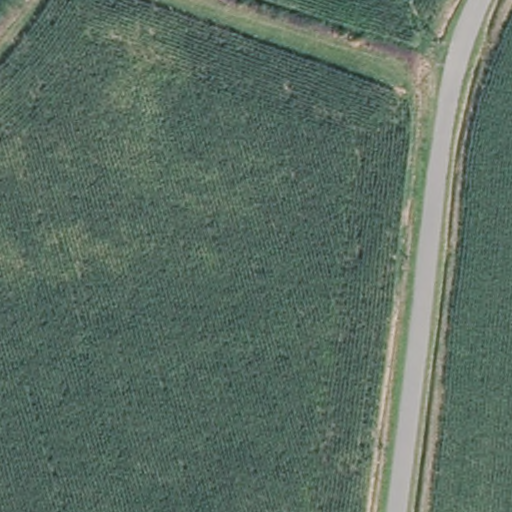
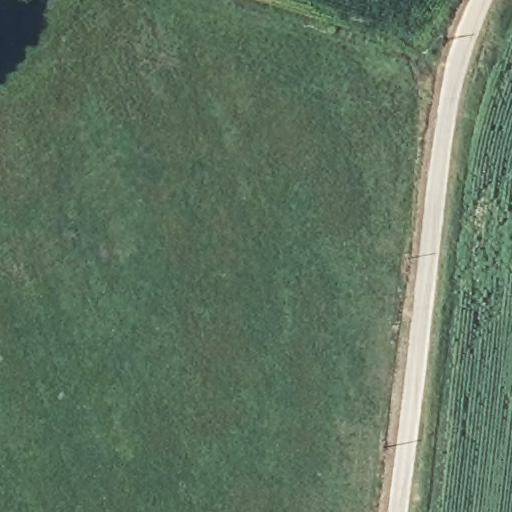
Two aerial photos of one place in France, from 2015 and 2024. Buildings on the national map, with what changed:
[]

